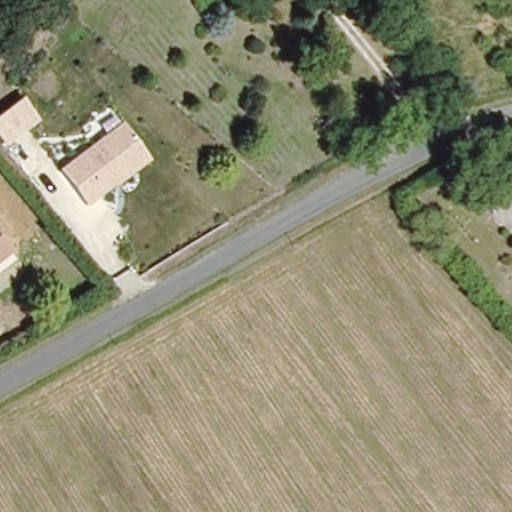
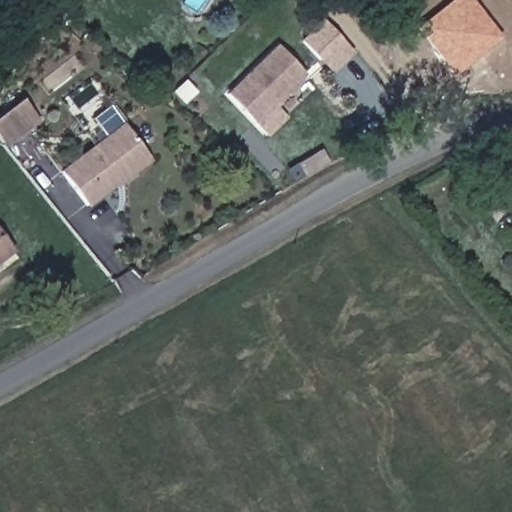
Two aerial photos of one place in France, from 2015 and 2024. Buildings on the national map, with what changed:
new [(451,75),(415,26),(449,0),(471,0),(499,36),(451,75)]
new [(333,74),(300,40),(322,19),(355,52),(333,74)]
new [(254,124),(225,93),(277,43),(306,74),(254,124)]
unchanged [(0,139),(0,115),(22,98),(40,120),(6,146),(0,139)]
unchanged [(151,161),(88,207),(58,168),(122,123),(151,161)]
unchanged [(0,256),(0,234),(10,246),(0,256)]

